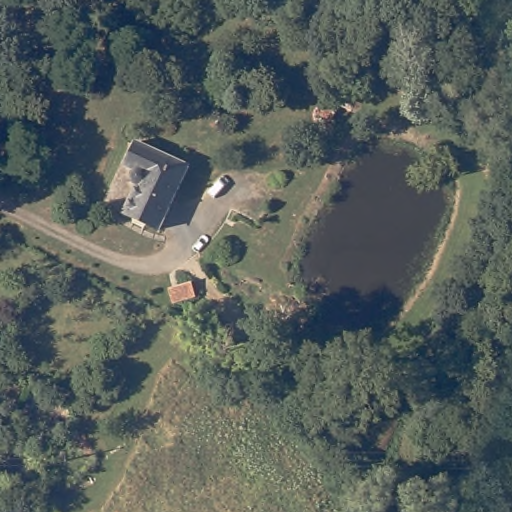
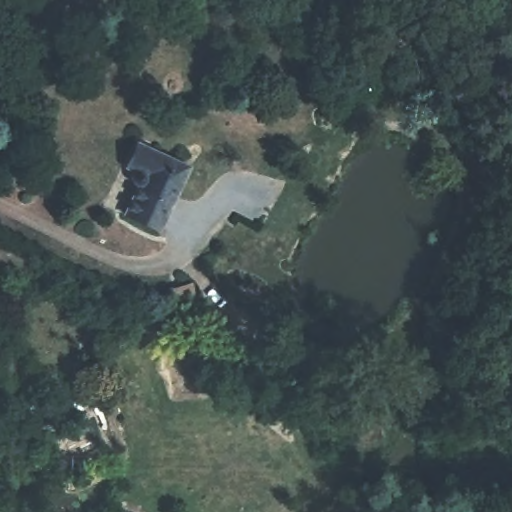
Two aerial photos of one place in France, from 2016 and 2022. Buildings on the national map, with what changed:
unchanged [(126,217),(137,190),(133,182),(132,174),(134,168),(124,164),(132,141),(190,164),(165,232),(126,217)]

